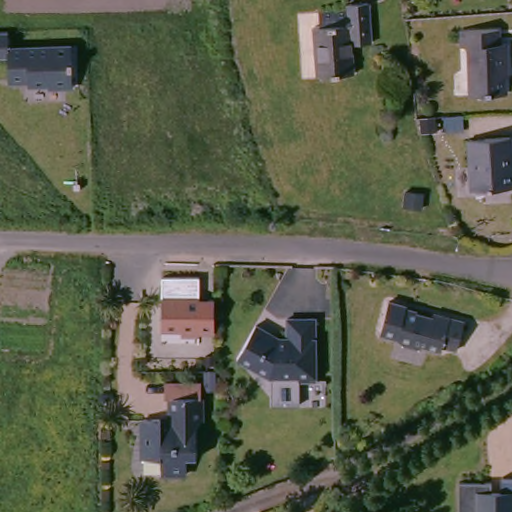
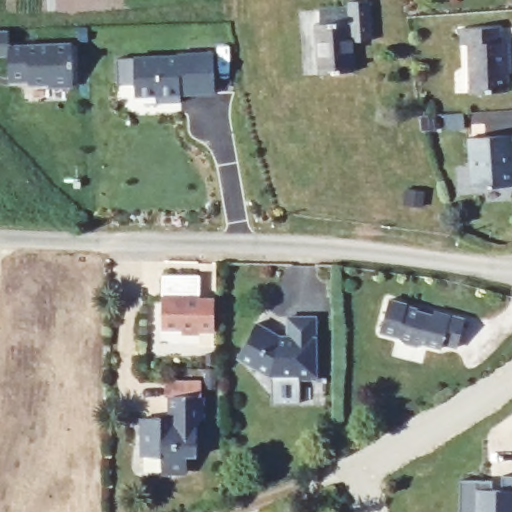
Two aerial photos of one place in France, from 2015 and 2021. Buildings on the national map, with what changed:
unchanged [(372,48),(352,49),(353,78),(318,80),(315,30),(314,18),(350,16),(348,8),(368,6),(372,48)]
unchanged [(73,80),(72,85),(27,86),(27,81),(10,80),(9,54),(0,54),(0,28),(10,28),(11,43),(76,41),(79,80),(73,80)]
unchanged [(480,96),(476,47),(470,48),(470,30),(510,28),(510,42),(512,42),(512,93),(480,96)]
new [(180,104),(156,105),(156,98),(135,99),(134,86),(117,86),(116,60),(178,59),(177,56),(213,54),(214,96),(189,96),(180,97),(180,104)]
unchanged [(476,190),(473,139),(512,138),(512,188),(476,190)]
unchanged [(157,282),(195,283),(195,308),(212,308),(212,337),(194,337),(194,341),(177,340),(177,335),(157,335),(157,305),(157,282)]
unchanged [(466,319),(459,348),(445,345),(443,349),(426,345),(417,347),(405,344),(398,338),(381,334),(390,300),(407,305),(406,309),(434,316),(435,311),(466,319)]
unchanged [(320,317),(322,380),(303,380),(303,377),(274,378),(240,359),(257,330),(275,340),(292,339),(292,318),(320,317)]
unchanged [(202,420),(197,420),(197,458),(187,458),(187,473),(162,473),(162,458),(144,457),(144,419),(179,419),(179,414),(172,413),(172,396),(167,396),(167,383),(185,383),(202,383),(202,420)]
unchanged [(470,467),(502,469),(501,482),(511,482),(511,464),(512,464),(512,512),(468,512),(470,467)]

